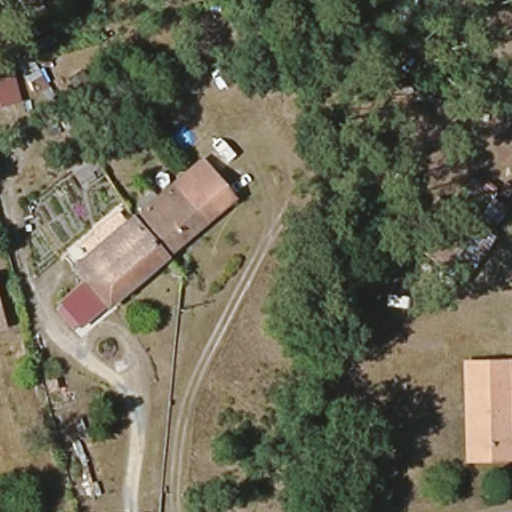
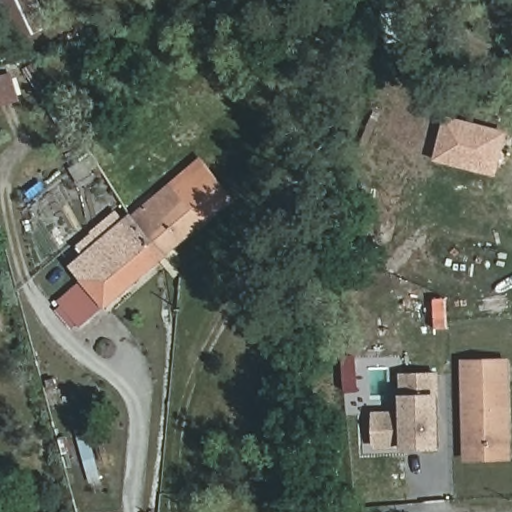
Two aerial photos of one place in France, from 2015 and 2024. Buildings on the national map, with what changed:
unchanged [(0,109),(0,75),(11,73),(19,103),(0,109)]
new [(434,161),(445,116),(508,131),(497,177),(434,161)]
unchanged [(76,333),(61,308),(86,293),(67,272),(91,256),(82,243),(118,212),(122,219),(202,160),(237,205),(76,333)]
unchanged [(472,459),(471,447),(464,368),(503,364),(507,419),(509,441),(510,456),(472,459)]
new [(442,449),(402,450),(373,449),(372,412),(400,412),(399,396),(399,374),(439,372),(440,394),(442,449)]

